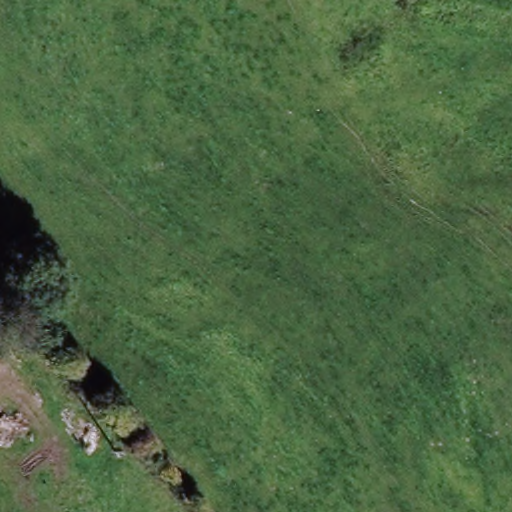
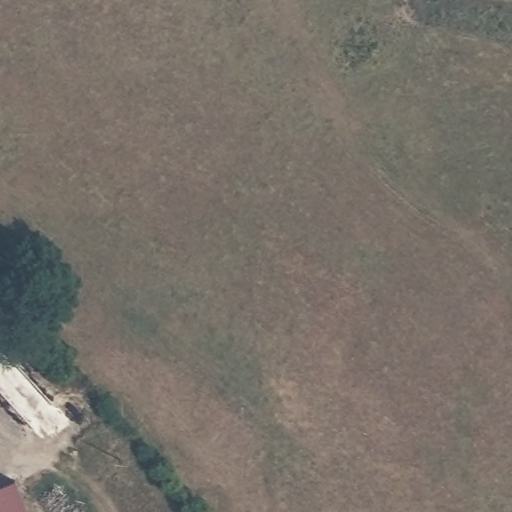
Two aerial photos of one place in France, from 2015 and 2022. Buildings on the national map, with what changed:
new [(12,484),(23,512),(0,512),(0,489),(12,484)]

